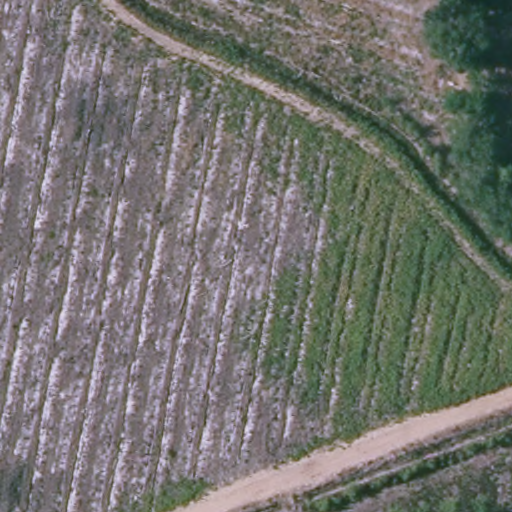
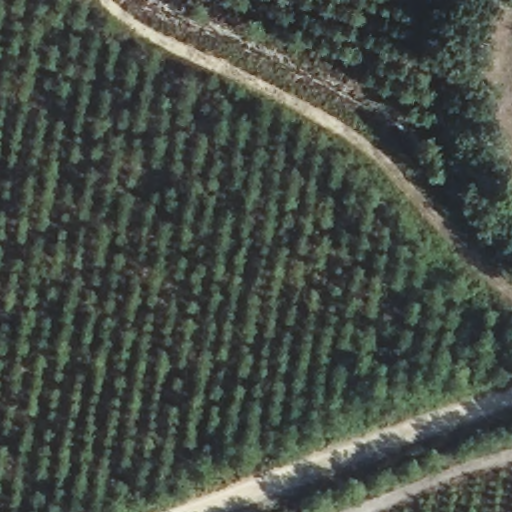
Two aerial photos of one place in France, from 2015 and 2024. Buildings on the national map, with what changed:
[]

